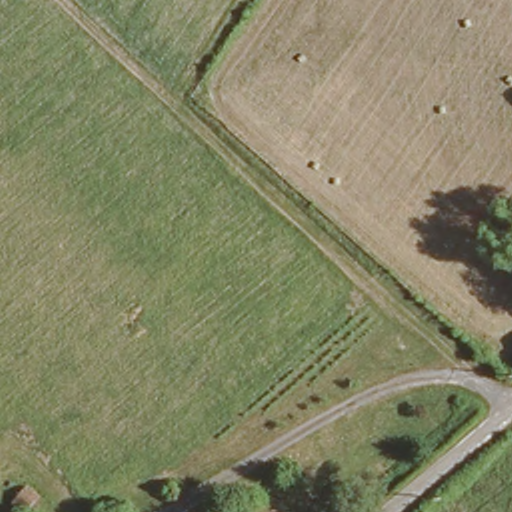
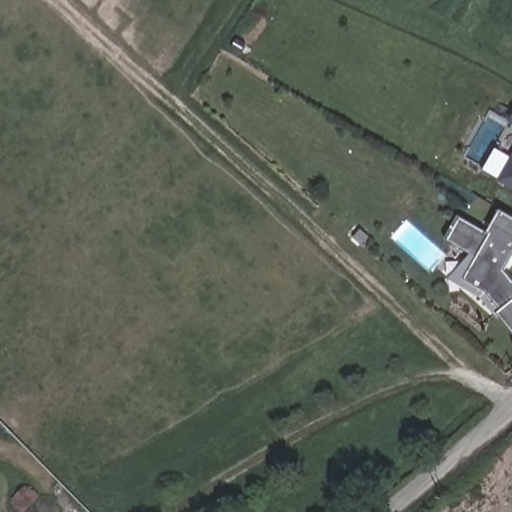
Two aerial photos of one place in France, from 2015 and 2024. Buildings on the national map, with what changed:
new [(512,157),(512,189),(498,182),(512,157)]
new [(512,280),(512,332),(500,317),(497,319),(482,299),(449,279),(472,255),(446,240),(458,215),(487,232),(500,209),(512,216),(512,257),(505,270),(512,280)]

